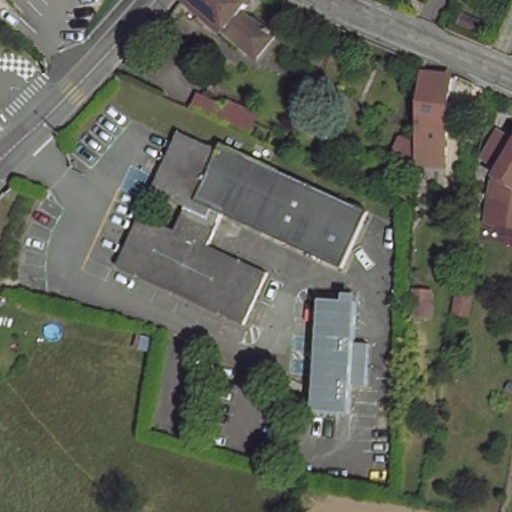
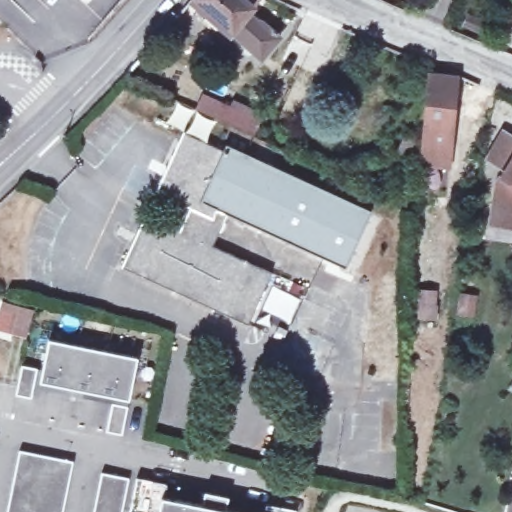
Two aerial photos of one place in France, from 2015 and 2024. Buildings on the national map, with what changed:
unchanged [(256,61),(244,50),(187,0),(252,0),(244,11),(263,28),(276,39),(256,61)]
unchanged [(459,79),(455,173),(425,171),(429,76),(459,79)]
unchanged [(251,130),(190,102),(199,86),(222,98),(226,90),(265,107),(251,130)]
unchanged [(499,183),(506,175),(486,162),(505,129),(512,134),(512,226),(492,222),(499,183)]
unchanged [(372,208),(348,265),(232,215),(219,249),(274,272),(252,326),(123,270),(147,217),(183,234),(194,209),(155,193),(182,131),(222,149),(226,143),(372,208)]
demolished [(354,336),(372,337),(371,379),(352,379),(353,408),(310,410),(314,291),(356,290),(354,336)]
new [(136,358),(128,401),(112,398),(41,383),(49,340),(136,358)]
new [(38,383),(36,401),(15,397),(20,366),(41,369),(38,383)]
new [(105,436),(112,398),(130,402),(123,440),(105,436)]
new [(72,461),(61,512),(6,512),(18,451),(72,461)]
new [(127,478),(121,512),(92,512),(100,474),(127,478)]
new [(167,485),(164,497),(201,505),(204,492),(228,498),(226,510),(233,512),(130,512),(136,478),(167,485)]
new [(295,511),(294,512),(265,512),(267,505),(295,511)]

